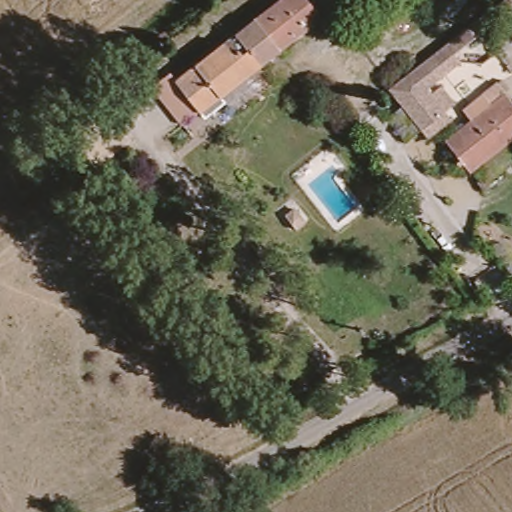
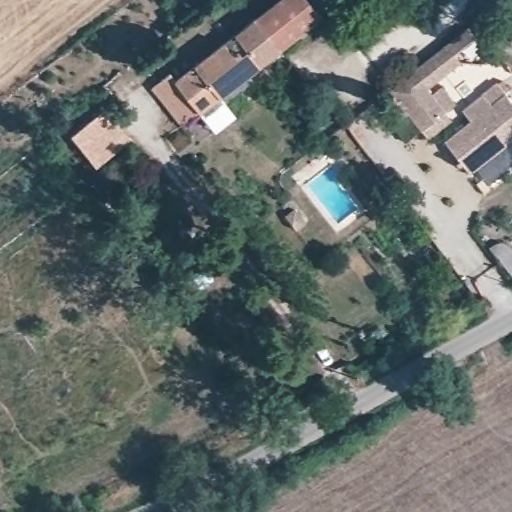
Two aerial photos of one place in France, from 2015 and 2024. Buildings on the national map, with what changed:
unchanged [(254,72),(223,94),(229,105),(210,119),(203,109),(185,121),(151,77),(170,63),(183,76),(288,0),(314,0),(327,19),(272,61),(278,70),(262,82),(254,72)]
unchanged [(411,69),(471,24),(480,34),(454,54),(460,63),(425,89),(411,69)]
unchanged [(425,89),(442,116),(438,120),(446,133),(435,140),(426,129),(419,135),(386,88),(411,69),(425,89)]
unchanged [(446,142),(488,109),(471,122),(463,111),(481,97),(494,88),(512,112),(512,140),(470,173),(446,142)]
new [(131,140),(96,168),(70,136),(105,108),(131,140)]

